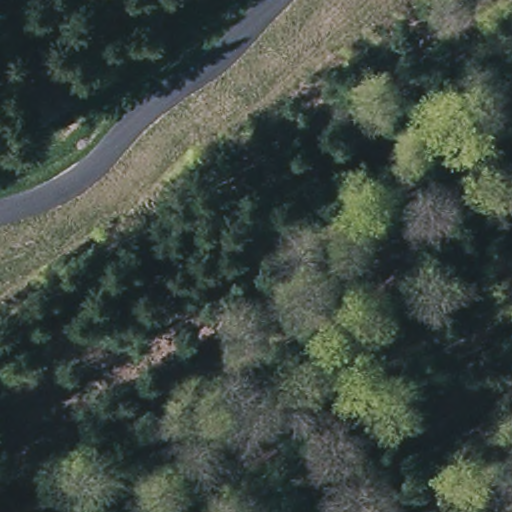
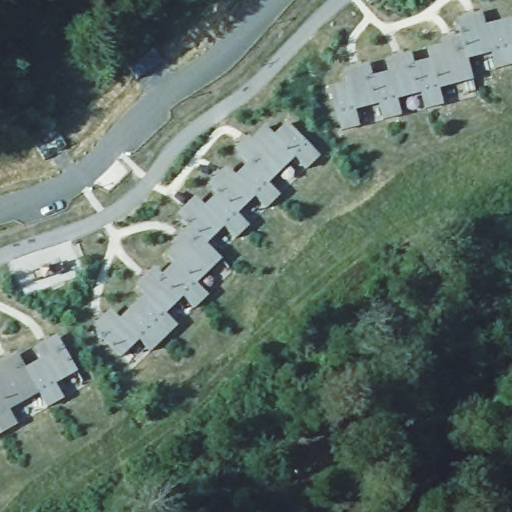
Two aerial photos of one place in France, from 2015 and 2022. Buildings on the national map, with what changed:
new [(344,69),(370,63),(373,76),(389,72),(386,59),(412,52),(414,63),(431,59),(429,48),(442,45),(441,40),(461,35),(457,19),(483,12),(486,24),(512,17),(512,65),(495,69),(492,53),(468,59),(473,79),(441,88),(444,105),(424,109),(422,93),(398,99),(402,116),(383,120),(379,105),(356,110),(359,127),(341,132),(330,87),(348,82),(344,69)]
new [(110,309),(119,317),(144,295),(136,285),(154,266),(163,274),(174,263),(166,254),(177,245),(173,241),(189,227),(177,215),(196,196),(204,205),(217,194),(208,184),(227,166),(236,175),(247,163),(234,150),(248,136),(251,138),(266,125),(275,135),(288,122),(321,156),(306,169),(296,159),(269,182),(281,195),(266,208),(255,197),(238,214),(249,225),(236,239),(224,227),(208,245),(221,260),(198,284),(208,296),(196,308),(183,297),(166,314),(178,327),(152,352),(139,339),(121,357),(92,327),(110,309)]
new [(1,367),(0,363),(0,362),(18,353),(26,368),(41,360),(34,347),(58,335),(78,372),(55,384),(63,400),(47,408),(39,393),(10,410),(17,425),(0,434),(0,367),(1,367)]

